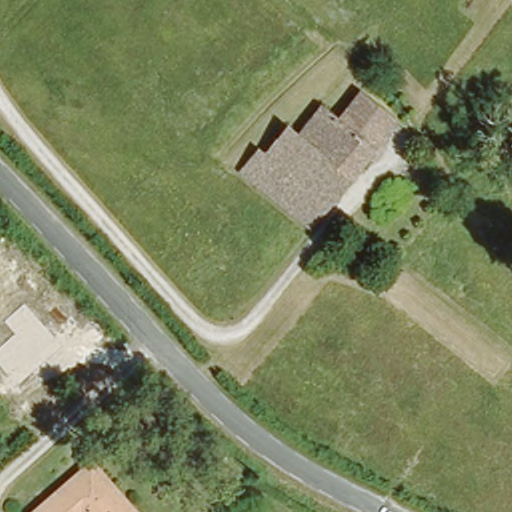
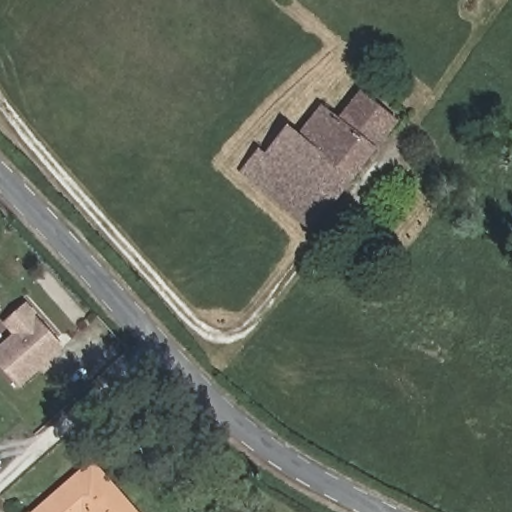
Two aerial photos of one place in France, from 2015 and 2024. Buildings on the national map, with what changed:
unchanged [(342,111),(363,85),(401,114),(380,141),(342,111)]
unchanged [(266,143),(272,148),(294,119),(308,130),(330,102),(342,111),(380,141),(319,218),(315,224),(246,168),(266,143)]
new [(25,303),(63,348),(18,389),(0,368),(0,345),(12,334),(2,324),(25,303)]
unchanged [(92,457),(139,512),(28,512),(92,457)]

